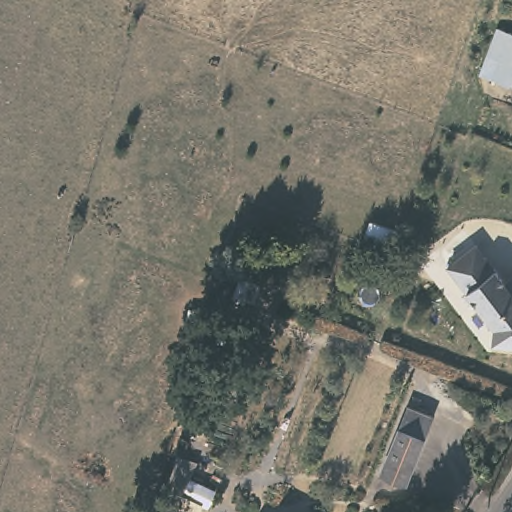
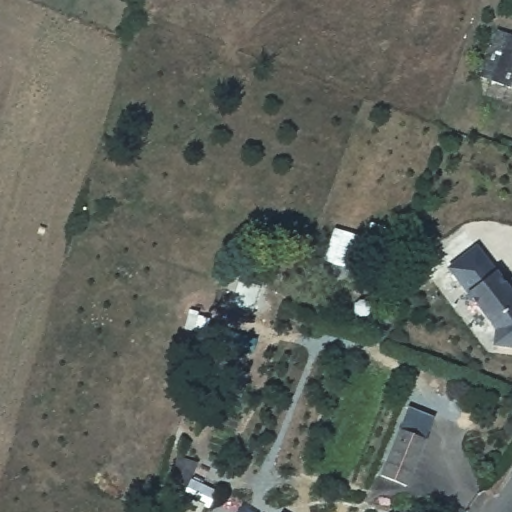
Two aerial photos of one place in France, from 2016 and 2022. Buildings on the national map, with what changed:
unchanged [(512,63),(503,83),(482,75),(503,29),(512,32),(512,63)]
unchanged [(496,327),(445,267),(473,246),(504,287),(509,282),(512,286),(512,346),(493,343),(496,327)]
unchanged [(429,419),(403,483),(379,473),(403,409),(429,419)]

